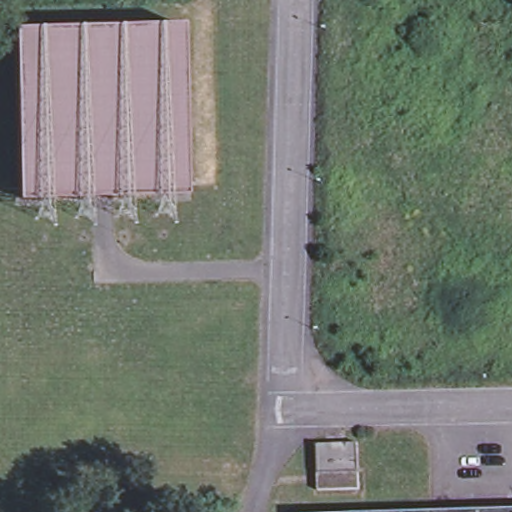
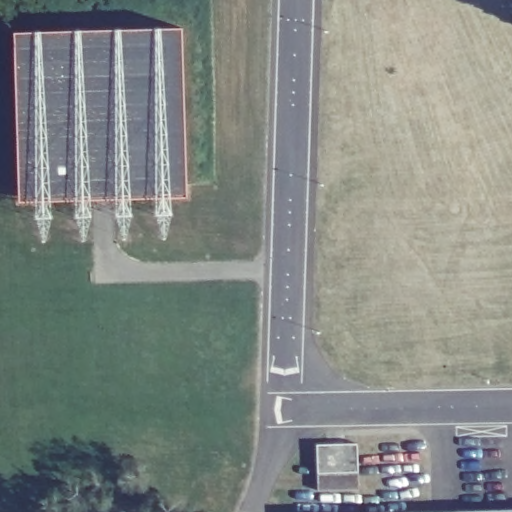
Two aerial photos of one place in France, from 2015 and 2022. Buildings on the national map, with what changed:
unchanged [(187,195),(18,200),(13,33),(182,28),(187,195)]
unchanged [(317,491),(316,445),(357,444),(358,490),(317,491)]

